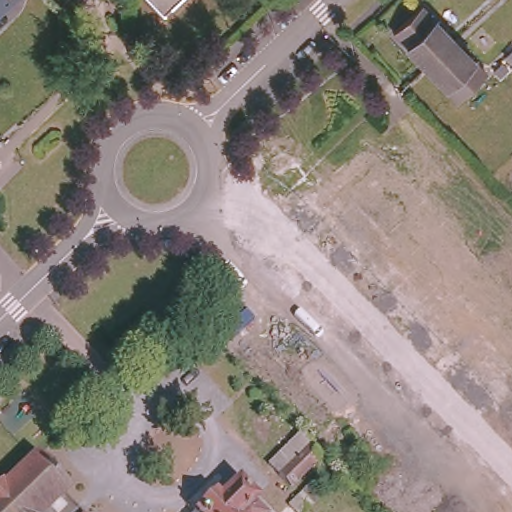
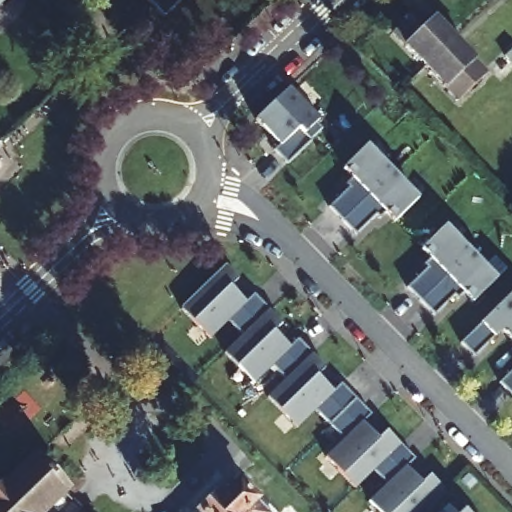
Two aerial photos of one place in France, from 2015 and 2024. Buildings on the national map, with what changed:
unchanged [(7,0),(0,8),(0,0),(7,0)]
unchanged [(187,0),(169,19),(151,0),(187,0)]
unchanged [(422,9),(454,43),(428,67),(397,34),(422,9)]
unchanged [(454,43),(488,78),(462,101),(428,67),(454,43)]
unchanged [(502,55),(512,47),(512,66),(502,55)]
new [(290,87),(320,119),(305,134),(312,141),(287,164),(274,150),(280,145),(255,119),(290,87)]
new [(350,188),(346,184),(352,178),(343,169),(367,145),(392,172),(342,220),(330,207),(350,188)]
new [(392,172),(418,198),(395,221),(386,212),(379,219),(376,215),(355,234),(342,220),(392,172)]
new [(427,268),(424,265),(430,259),(422,249),(445,226),(470,253),(420,302),(407,288),(427,268)]
new [(470,253),(504,287),(480,310),(463,293),(457,299),(454,296),(434,315),(420,302),(470,253)]
new [(225,264),(238,278),(230,286),(246,302),(254,294),(269,309),(242,335),(228,321),(210,338),(180,308),(225,264)]
new [(512,342),(501,331),(474,357),(461,343),(512,293),(512,342)]
new [(242,335),(269,309),(298,339),(290,347),(305,362),(286,380),(272,366),(254,384),(225,353),(242,335)]
new [(286,380),(305,362),(318,376),(310,384),(325,399),(342,384),(357,399),(330,425),(315,410),(297,428),(268,398),(286,380)]
new [(512,395),(500,383),(512,371),(512,395)]
new [(344,439),(330,425),(357,399),(371,414),(363,422),(378,439),(387,431),(400,444),(373,470),(355,488),(326,457),(344,439)]
demolished [(259,457),(290,427),(314,452),(283,482),(259,457)]
new [(387,484),(373,470),(400,444),(415,459),(407,467),(422,483),(430,475),(443,489),(420,512),(379,512),(369,502),(387,484)]
unchanged [(4,484),(7,487),(32,464),(60,493),(40,512),(0,512),(0,487),(4,484)]
unchanged [(213,493),(219,497),(238,479),(260,499),(269,512),(196,512),(213,493)]
unchanged [(77,506),(83,512),(71,512),(77,506)]
new [(464,512),(461,512),(463,511),(464,512)]

